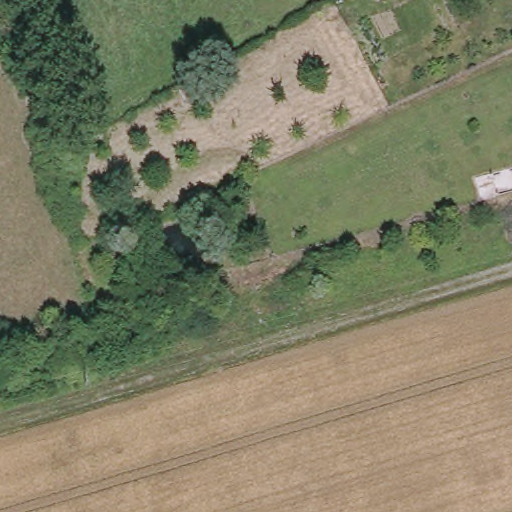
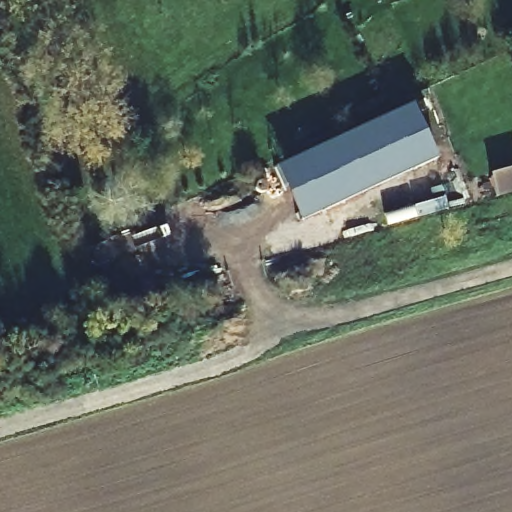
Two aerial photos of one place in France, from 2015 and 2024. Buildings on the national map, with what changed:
new [(300,221),(275,167),(405,107),(430,161),(300,221)]
new [(512,165),(512,190),(494,196),(487,172),(512,165)]

